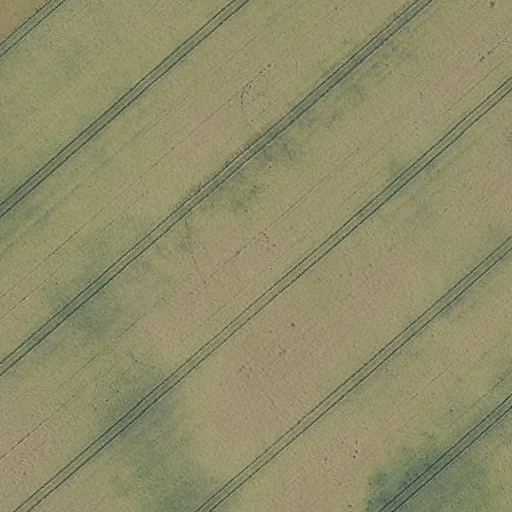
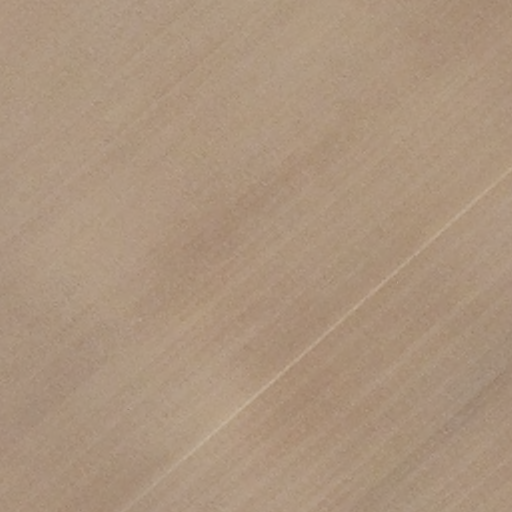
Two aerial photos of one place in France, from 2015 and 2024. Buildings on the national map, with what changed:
[]

